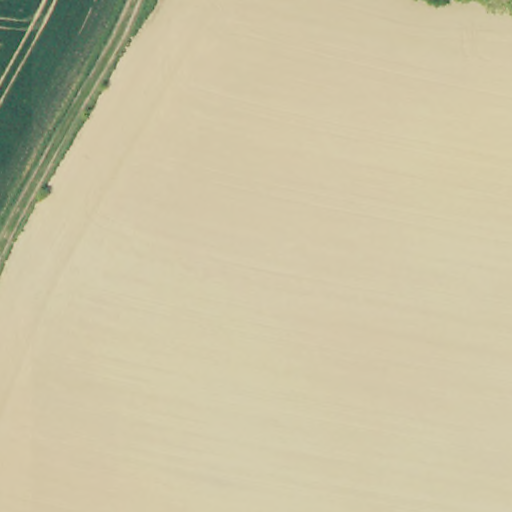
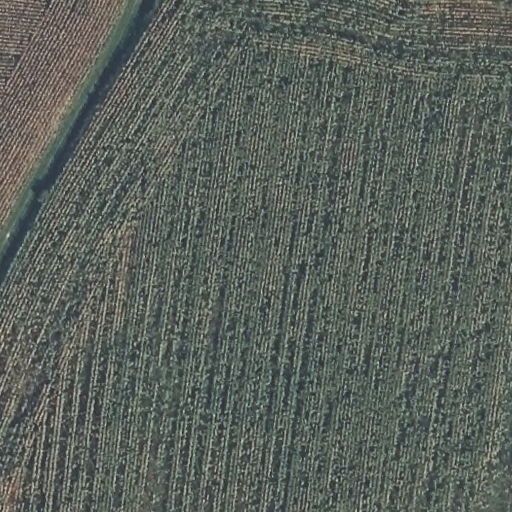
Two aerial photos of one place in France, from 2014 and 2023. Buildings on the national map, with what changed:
[]

